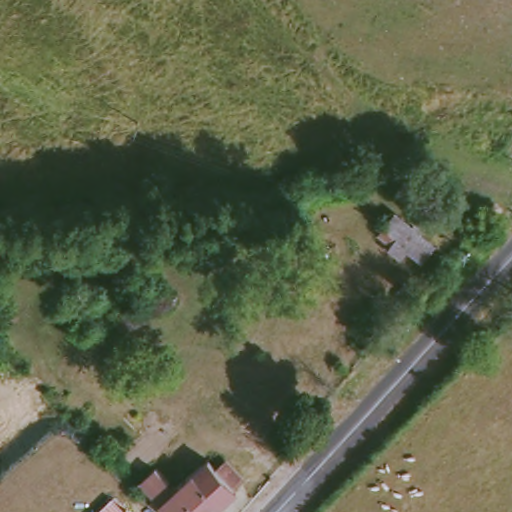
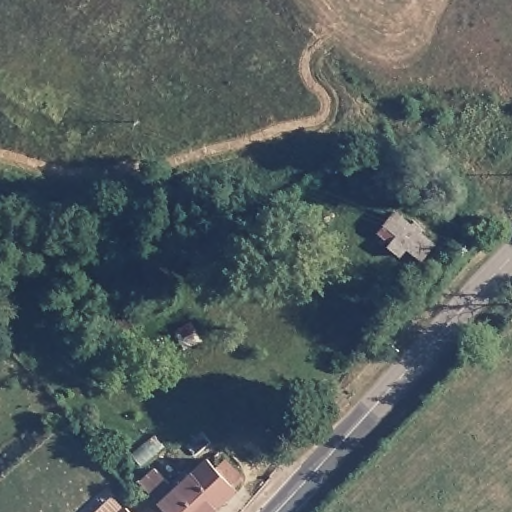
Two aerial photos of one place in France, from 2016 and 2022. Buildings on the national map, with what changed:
unchanged [(424,240),(411,255),(396,244),(390,250),(378,240),(398,217),(424,240)]
unchanged [(243,480),(235,488),(237,491),(215,512),(198,512),(177,491),(194,474),(208,460),(216,468),(225,460),(243,480)]
unchanged [(198,512),(164,512),(139,487),(153,475),(159,481),(173,495),(177,491),(198,512)]
unchanged [(128,508),(131,512),(124,512),(128,508)]

